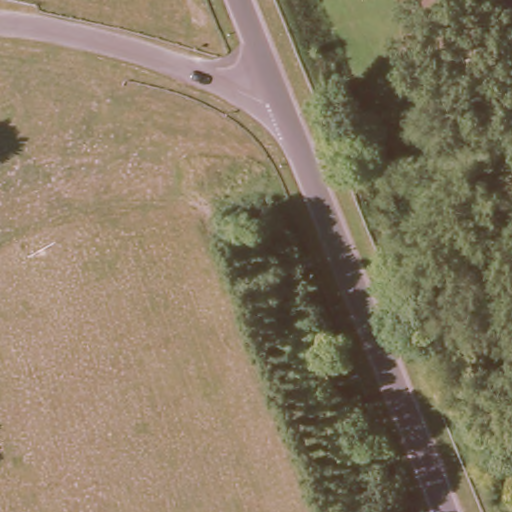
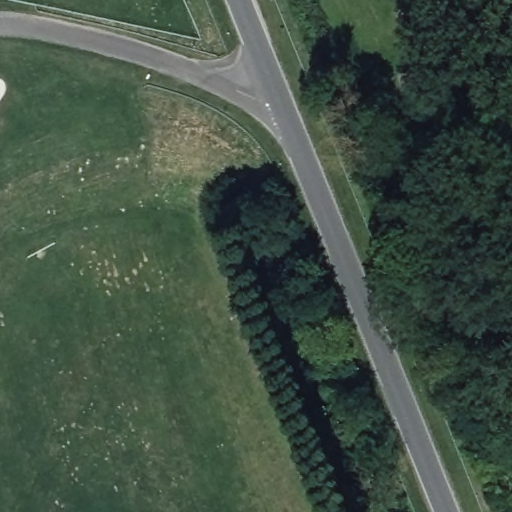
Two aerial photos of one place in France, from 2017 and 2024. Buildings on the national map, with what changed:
[]

